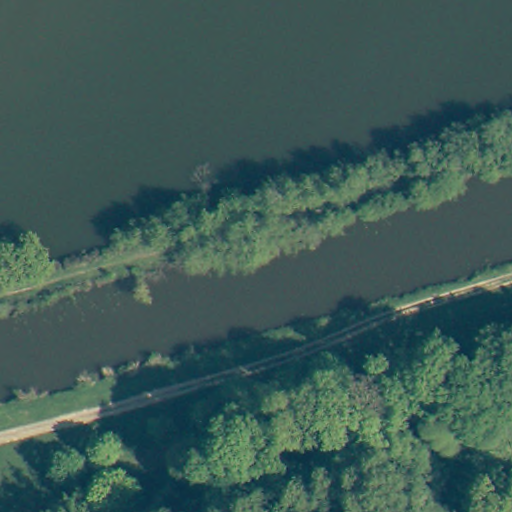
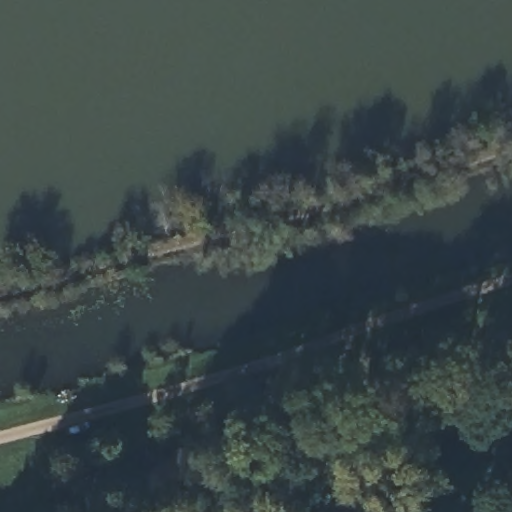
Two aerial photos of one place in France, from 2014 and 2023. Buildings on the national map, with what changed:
[]

